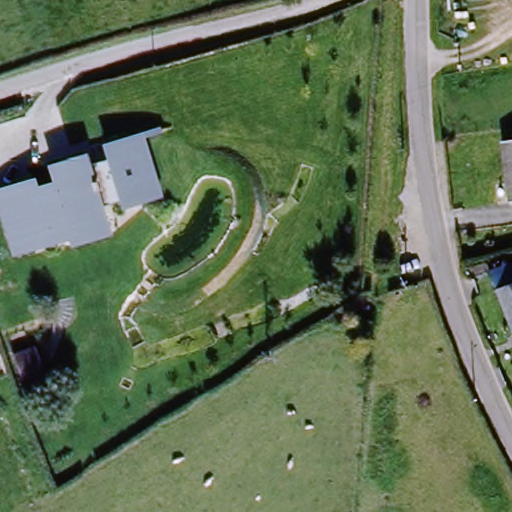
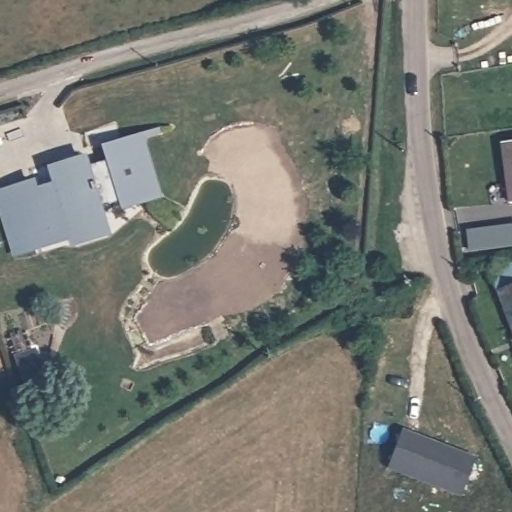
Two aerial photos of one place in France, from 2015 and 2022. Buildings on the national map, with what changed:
unchanged [(162,198),(122,211),(117,200),(101,204),(112,239),(70,250),(68,241),(15,258),(0,212),(0,191),(37,180),(39,187),(50,183),(45,168),(86,156),(91,168),(105,163),(100,147),(142,134),(162,198)]
unchanged [(502,148),(512,147),(512,208),(507,208),(502,148)]
unchanged [(498,297),(491,279),(512,271),(512,327),(500,296),(498,297)]
new [(403,430),(477,457),(463,494),(390,467),(403,430)]

